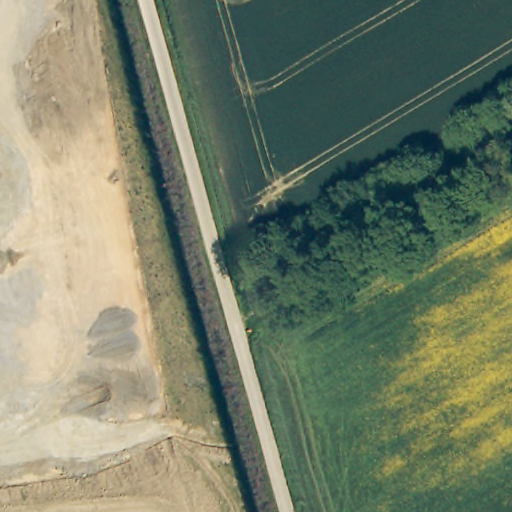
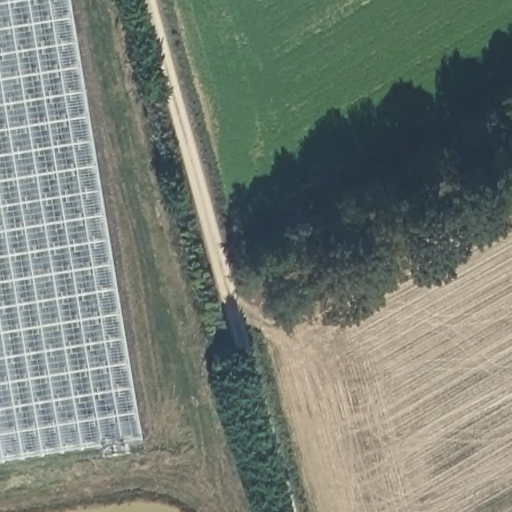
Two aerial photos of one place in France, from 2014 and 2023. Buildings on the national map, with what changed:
new [(62,0),(133,438),(0,460),(0,0),(62,0)]

